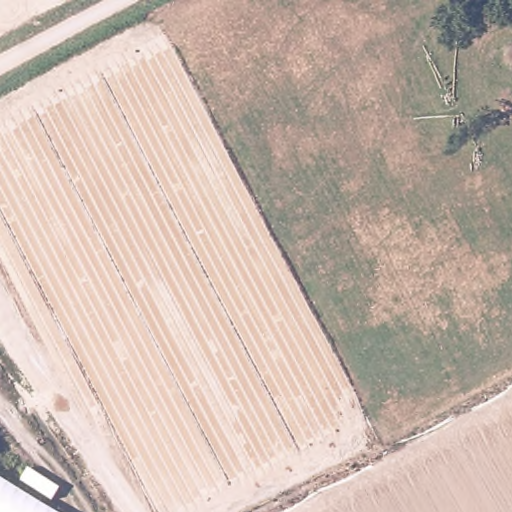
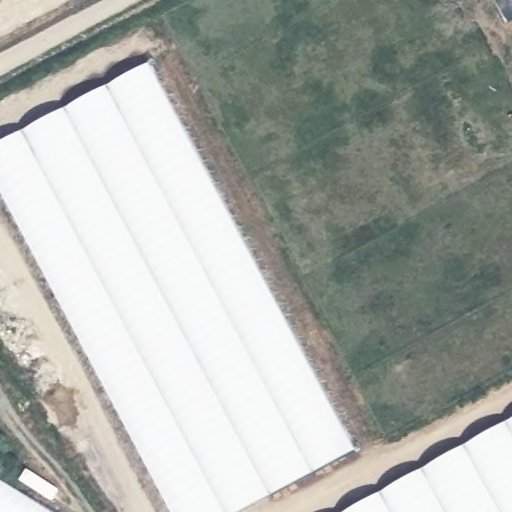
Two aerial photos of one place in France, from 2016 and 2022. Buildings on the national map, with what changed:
new [(0,181),(0,141),(150,61),(357,450),(240,512),(172,512),(0,181)]
new [(512,512),(345,512),(512,419),(512,512)]
unchanged [(53,512),(0,512),(0,479),(53,512)]

